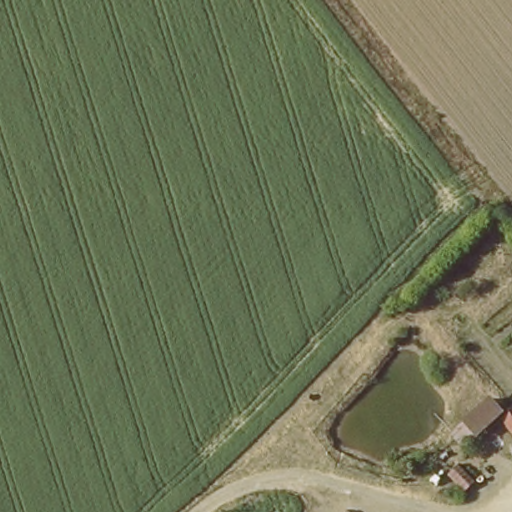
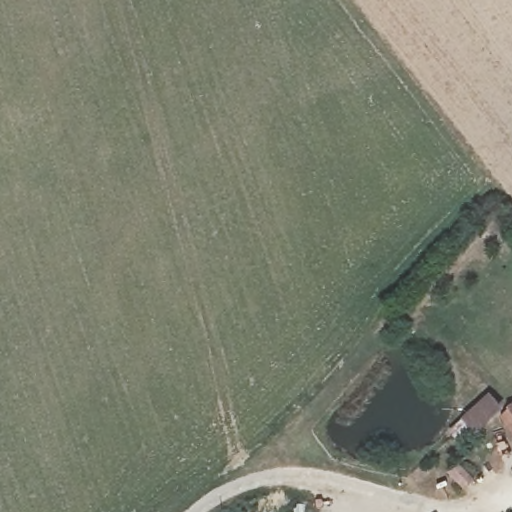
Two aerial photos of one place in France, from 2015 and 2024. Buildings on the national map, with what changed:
unchanged [(461,423),(493,399),(505,416),(473,440),(461,423)]
unchanged [(508,420),(512,417),(512,425),(508,420)]

